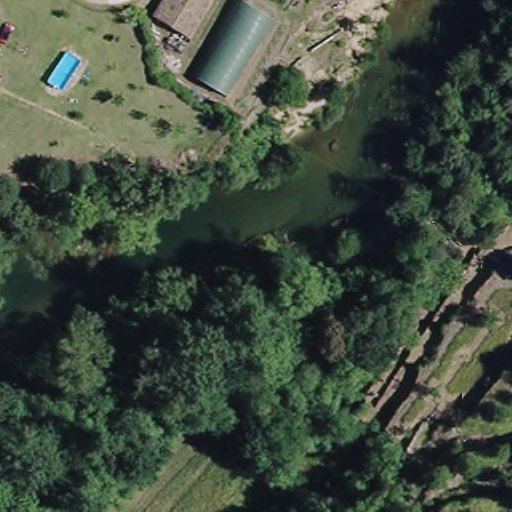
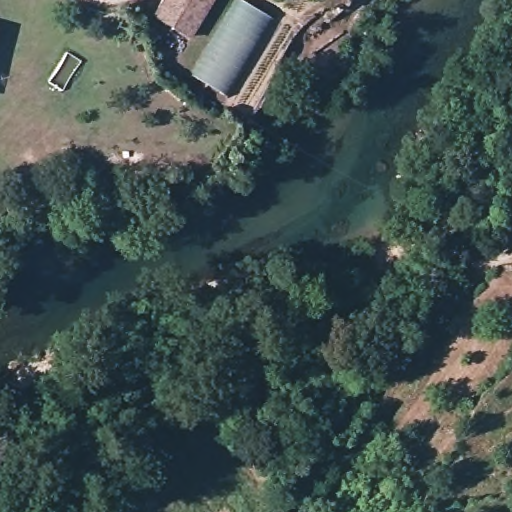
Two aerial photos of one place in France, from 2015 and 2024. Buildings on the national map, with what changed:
unchanged [(154,15),(162,0),(210,0),(189,36),(154,15)]
unchanged [(236,5),(267,23),(228,96),(196,79),(236,5)]

